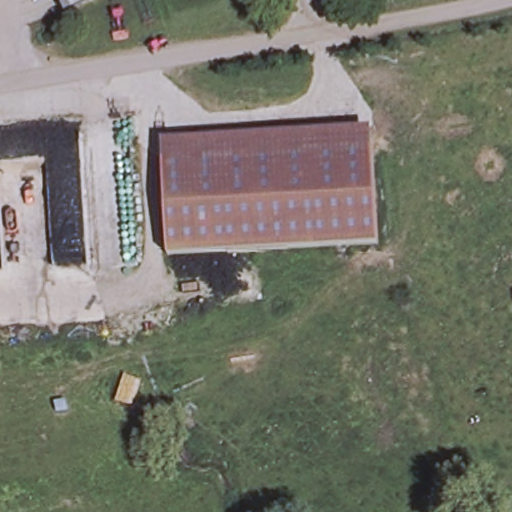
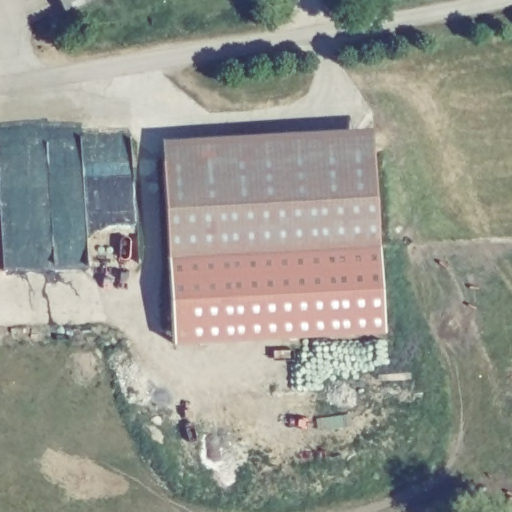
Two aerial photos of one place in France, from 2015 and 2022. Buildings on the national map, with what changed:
unchanged [(69,10),(64,0),(91,0),(69,10)]
unchanged [(382,246),(168,257),(166,163),(165,143),(375,132),(377,151),(382,246)]
new [(382,246),(385,307),(169,313),(168,257),(382,246)]

